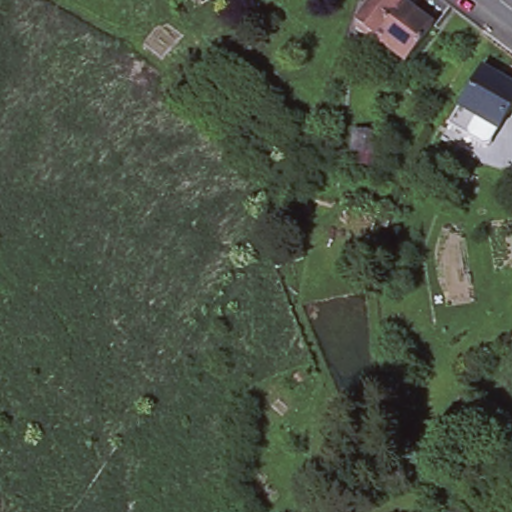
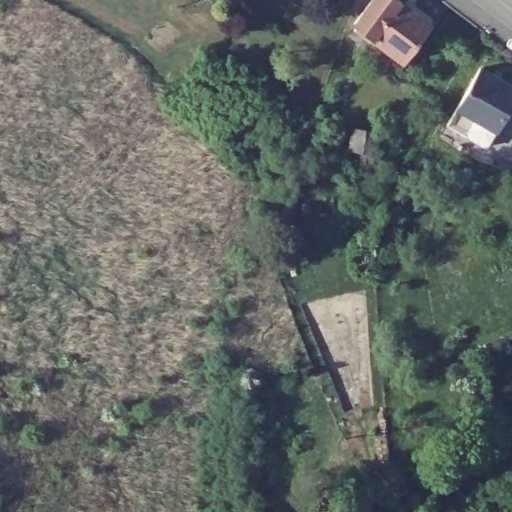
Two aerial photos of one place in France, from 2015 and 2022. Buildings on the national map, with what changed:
unchanged [(355,29),(364,19),(360,16),(373,0),(398,0),(401,2),(373,38),(370,41),(355,29)]
unchanged [(401,2),(433,25),(405,61),(373,38),(401,2)]
unchanged [(458,122),(469,104),(491,65),(512,78),(512,121),(508,128),(497,145),(458,122)]

